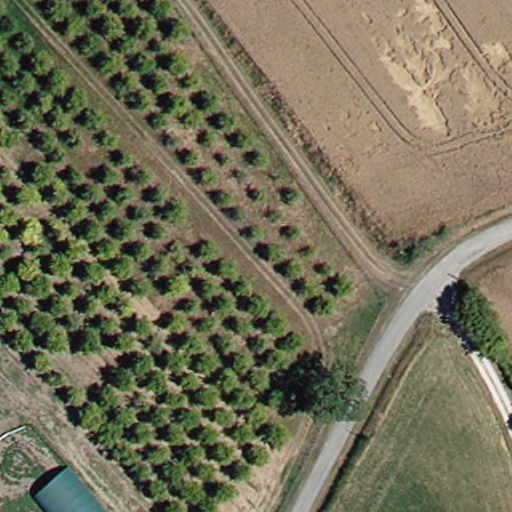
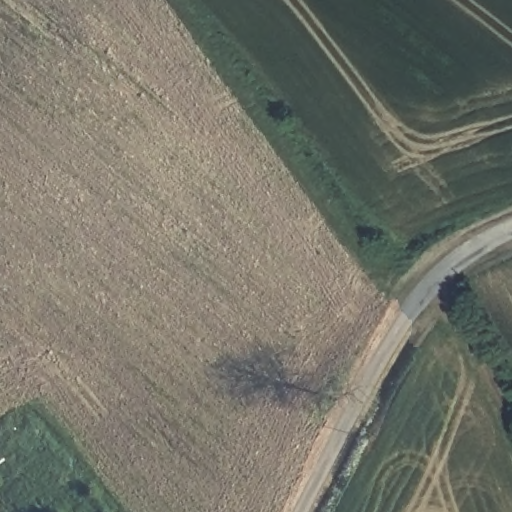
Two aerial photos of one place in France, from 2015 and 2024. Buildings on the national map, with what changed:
unchanged [(34,495),(70,459),(115,512),(48,512),(34,495)]

